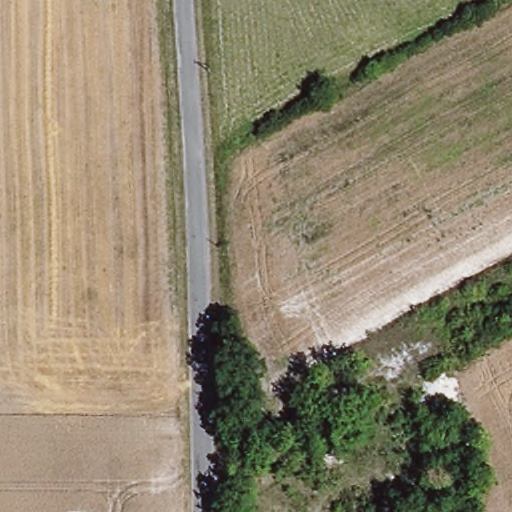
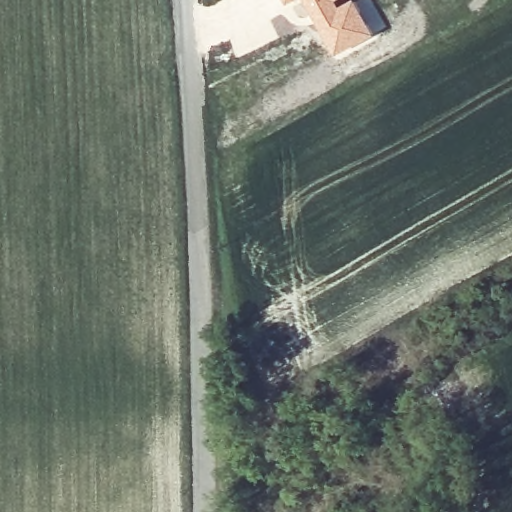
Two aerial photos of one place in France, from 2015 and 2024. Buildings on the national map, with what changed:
new [(290,4),(289,0),(299,0),(290,4)]
new [(342,5),(351,0),(359,0),(377,32),(337,55),(307,0),(339,0),(342,5)]

